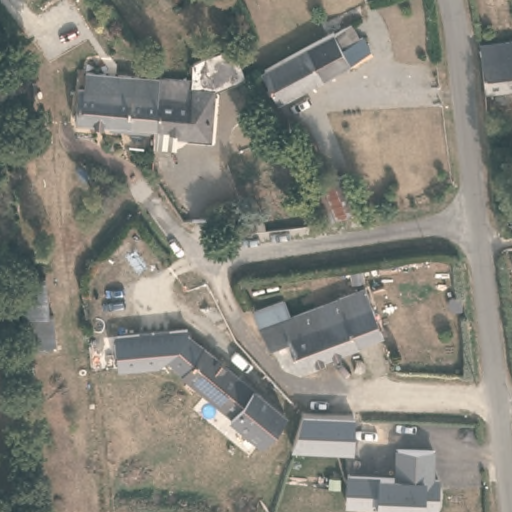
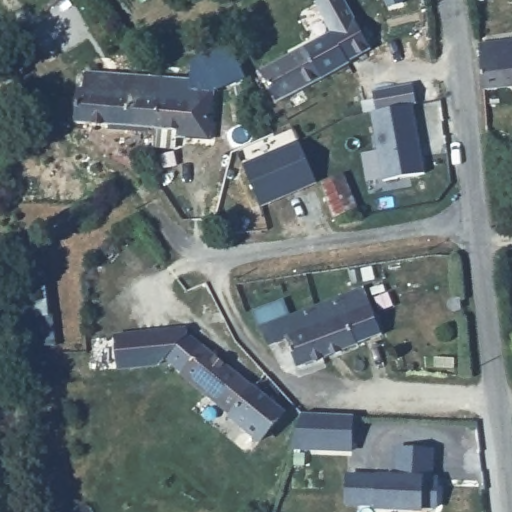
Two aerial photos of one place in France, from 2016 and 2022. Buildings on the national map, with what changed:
unchanged [(330,32),(337,34),(353,25),(360,39),(366,45),(369,51),(281,100),(263,69),(330,32)]
unchanged [(512,40),(512,87),(487,90),(482,44),(512,40)]
unchanged [(192,77),(193,61),(231,46),(246,75),(217,90),(212,137),(179,135),(179,129),(155,127),(159,75),(192,77)]
unchanged [(155,127),(75,122),(77,87),(84,86),(86,70),(159,75),(155,127)]
new [(413,106),(422,175),(381,181),(372,113),(413,106)]
new [(262,206),(242,164),(299,140),(317,182),(262,206)]
unchanged [(318,184),(345,175),(358,206),(332,219),(318,184)]
unchanged [(51,273),(58,343),(30,345),(22,276),(51,273)]
unchanged [(280,298),(286,315),(332,296),(331,293),(360,281),(380,330),(355,340),(356,341),(296,365),(285,336),(266,344),(258,330),(257,327),(258,326),(251,310),(280,298)]
unchanged [(187,327),(188,332),(169,355),(161,367),(118,370),(115,337),(187,327)]
unchanged [(232,430),(237,422),(234,418),(234,414),(186,375),(187,372),(169,355),(188,332),(257,390),(282,412),(260,440),(254,435),(246,443),(232,430)]
unchanged [(353,453),(291,450),(302,413),(354,416),(353,453)]
unchanged [(395,475),(396,447),(435,448),(435,477),(440,477),(438,511),(347,506),(348,473),(395,475)]

